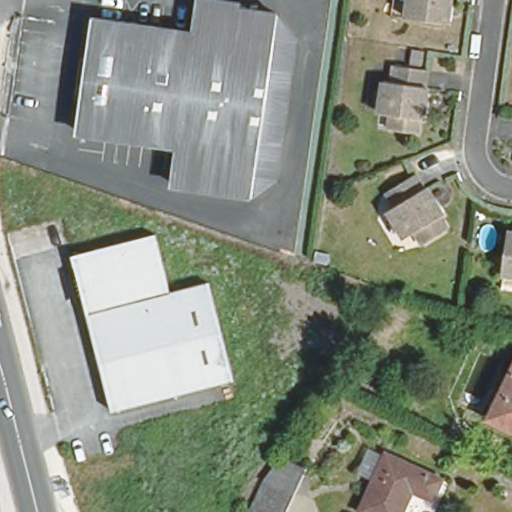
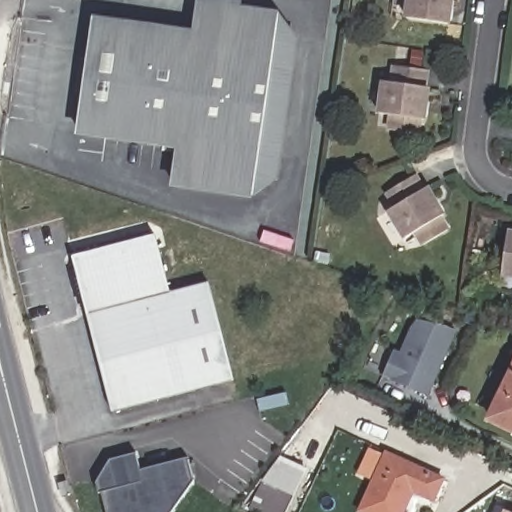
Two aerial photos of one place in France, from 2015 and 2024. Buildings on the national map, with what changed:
unchanged [(406,17),(408,0),(451,0),(447,23),(406,17)]
unchanged [(291,170),(271,189),(191,187),(192,149),(92,146),(96,31),(196,34),(197,4),(276,7),(295,28),(291,170)]
unchanged [(427,71),(425,88),(429,88),(424,120),(420,120),(418,134),(389,130),(391,116),(380,114),(384,82),(392,83),(395,66),(427,71)]
unchanged [(429,190),(433,188),(450,215),(446,218),(454,230),(429,245),(421,233),(411,239),(394,211),(401,207),(393,192),(420,175),(429,190)]
unchanged [(510,232),(512,232),(512,274),(504,273),(510,232)]
unchanged [(156,244),(171,303),(209,293),(234,389),(113,421),(74,265),(156,244)]
new [(429,397),(382,378),(394,349),(400,352),(410,328),(417,319),(439,324),(457,330),(429,397)]
unchanged [(512,368),(512,429),(488,418),(512,368)]
unchanged [(442,479),(431,501),(412,493),(403,512),(364,512),(360,510),(373,481),(357,473),(367,448),(385,456),(386,453),(442,479)]
new [(173,512),(107,512),(102,492),(98,494),(95,484),(111,459),(136,453),(140,469),(187,458),(193,483),(173,512)]
unchanged [(248,509),(263,481),(281,458),(305,469),(286,512),(254,512),(248,509)]
new [(505,509),(511,512),(504,512),(505,509)]

